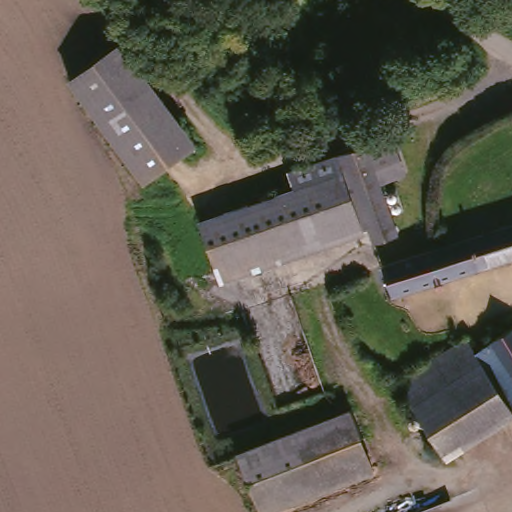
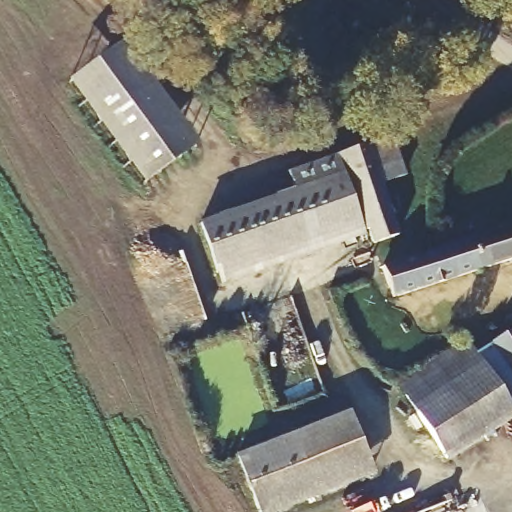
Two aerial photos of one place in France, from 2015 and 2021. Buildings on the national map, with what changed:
unchanged [(139,186),(64,82),(117,44),(192,147),(139,186)]
unchanged [(385,143),(393,168),(370,176),(392,241),(368,250),(363,235),(336,160),(385,143)]
unchanged [(194,229),(288,196),(282,179),(336,160),(363,235),(214,286),(194,229)]
unchanged [(387,298),(377,268),(512,226),(512,259),(387,298)]
unchanged [(491,344),(512,333),(512,375),(491,344)]
unchanged [(441,461),(393,386),(461,342),(510,418),(441,461)]
unchanged [(274,512),(254,512),(232,456),(345,412),(369,474),(274,512)]

